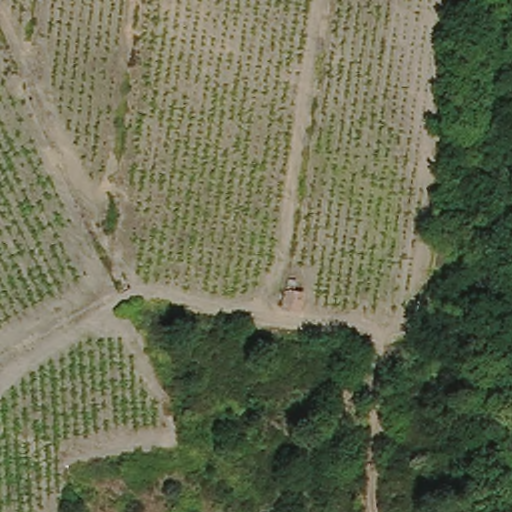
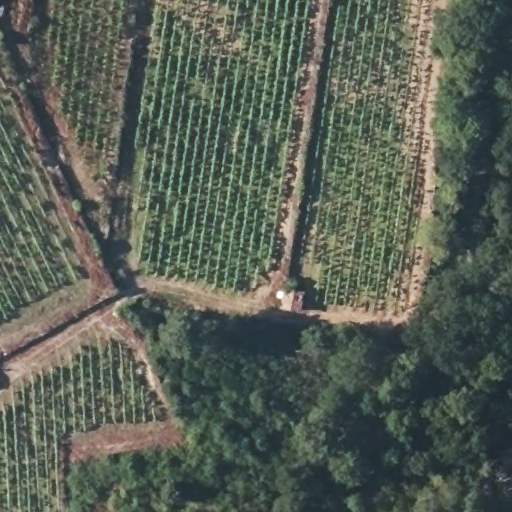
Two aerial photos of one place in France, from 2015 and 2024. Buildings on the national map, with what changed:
unchanged [(301,314),(282,312),(282,303),(285,281),(294,282),(297,282),(295,294),(303,295),(301,314)]

